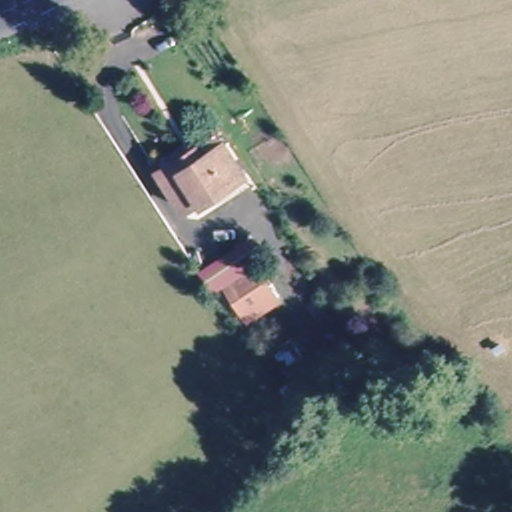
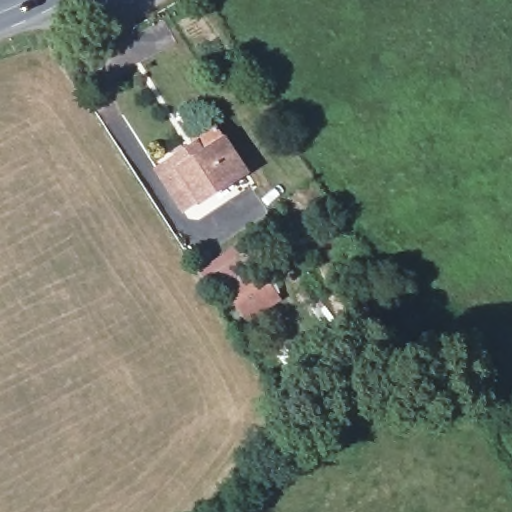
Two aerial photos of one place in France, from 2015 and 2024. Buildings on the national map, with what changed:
unchanged [(240,162),(183,205),(159,167),(195,140),(194,138),(214,123),(240,162)]
unchanged [(265,284),(240,302),(231,285),(256,268),(265,284)]
unchanged [(328,380),(303,397),(291,379),(315,362),(328,380)]

